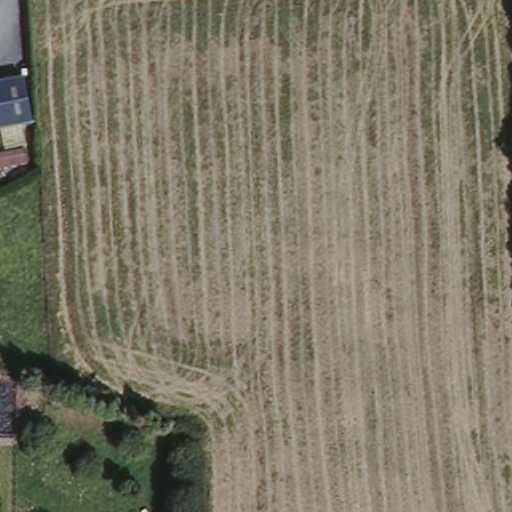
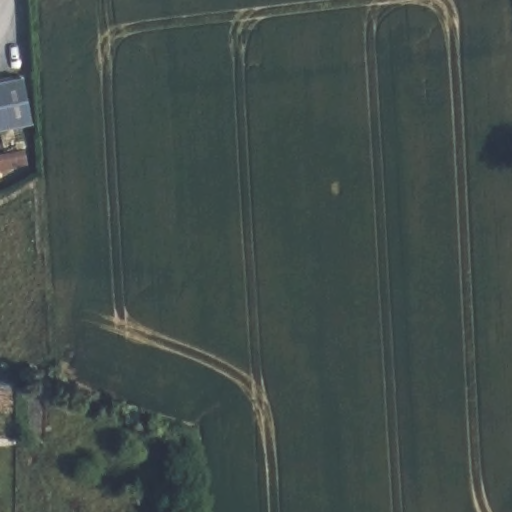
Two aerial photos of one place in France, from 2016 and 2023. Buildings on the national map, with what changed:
unchanged [(34,124),(0,132),(0,80),(23,74),(34,124)]

